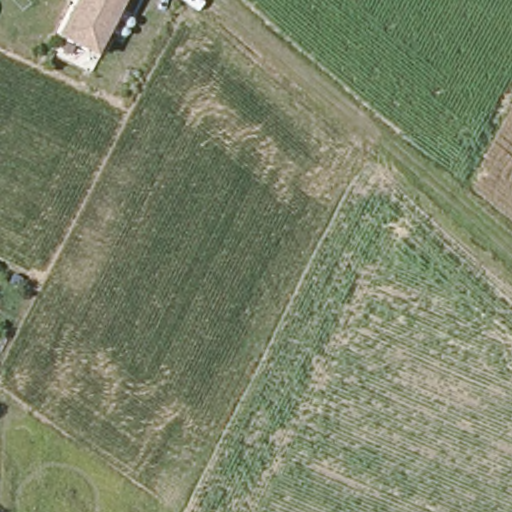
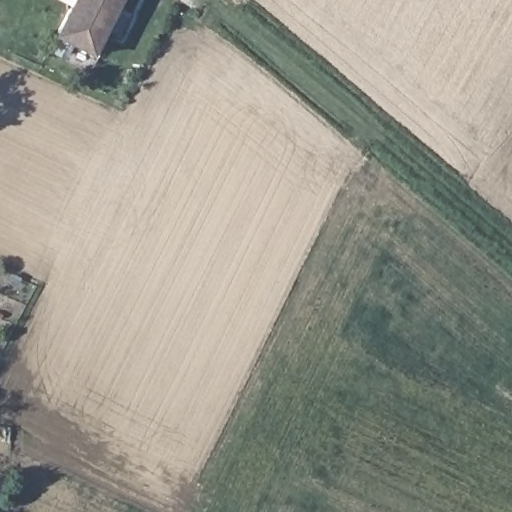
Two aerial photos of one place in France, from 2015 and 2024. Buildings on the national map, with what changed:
unchanged [(100,52),(96,60),(56,41),(77,0),(121,0),(97,48),(100,52)]

